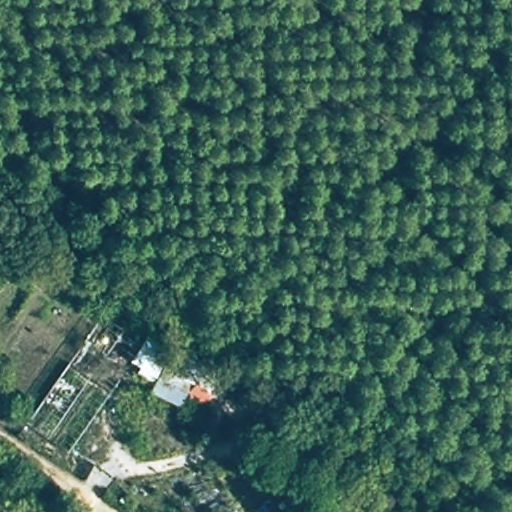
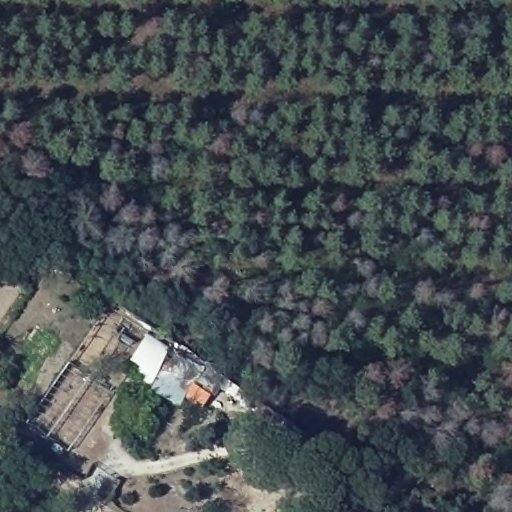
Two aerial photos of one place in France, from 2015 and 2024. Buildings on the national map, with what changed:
unchanged [(170,351),(207,374),(182,412),(149,390),(170,351)]

